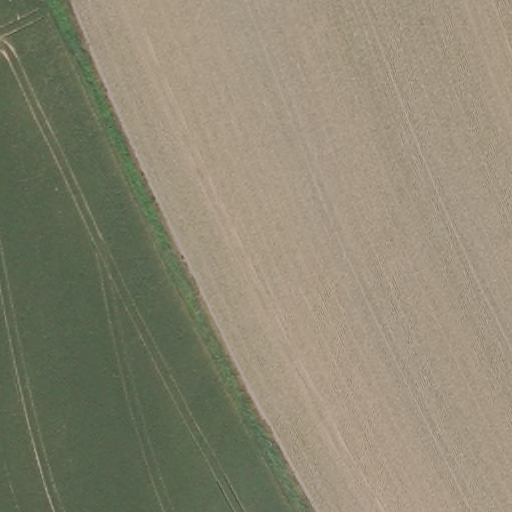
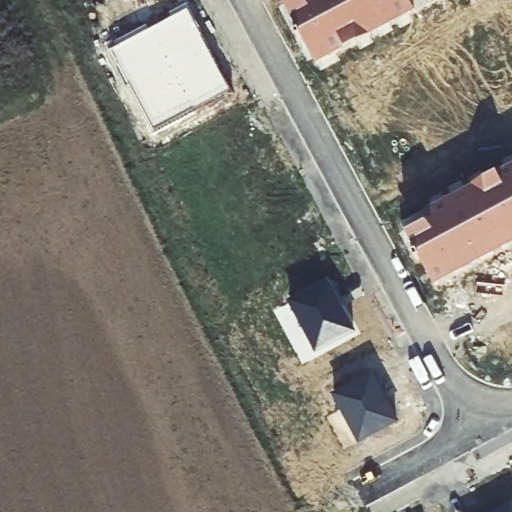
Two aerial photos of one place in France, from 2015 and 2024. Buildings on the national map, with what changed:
new [(291,0),(441,0),(316,65),(284,4),(291,0)]
new [(231,92),(154,132),(110,51),(188,11),(231,92)]
new [(512,246),(434,287),(399,225),(512,165),(512,246)]
new [(328,281),(336,297),(334,298),(352,331),(315,351),(289,302),(328,281)]
new [(372,375),(380,390),(377,391),(395,421),(357,441),(332,396),(372,375)]
new [(511,512),(495,512),(507,505),(511,512)]

